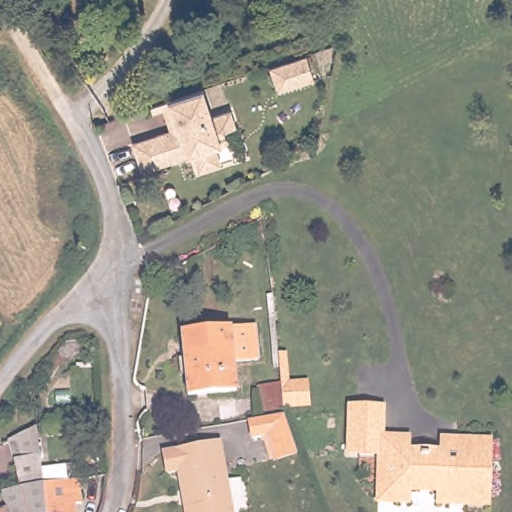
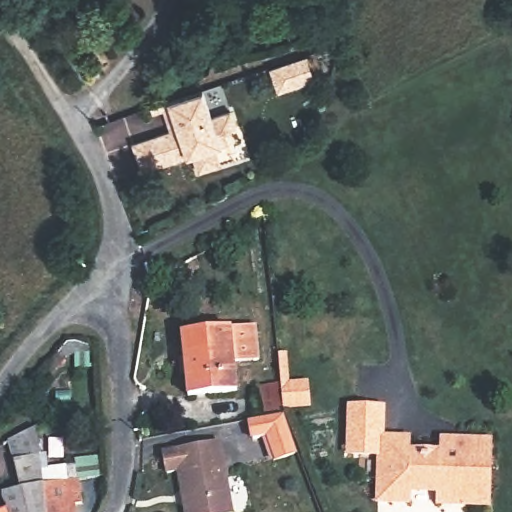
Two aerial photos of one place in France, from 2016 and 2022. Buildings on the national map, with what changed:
unchanged [(278,91),(269,66),(304,54),(314,79),(278,91)]
unchanged [(235,111),(241,127),(229,132),(233,144),(220,148),(225,165),(204,172),(197,155),(192,157),(185,141),(174,146),(180,161),(148,174),(137,146),(179,131),(170,110),(161,114),(158,106),(179,99),(207,90),(218,117),(235,111)]
unchanged [(192,400),(185,336),(257,330),(260,365),(236,366),(239,395),(192,400)]
unchanged [(260,414),(256,386),(279,383),(278,351),(289,350),(292,379),(308,378),(310,408),(260,414)]
unchanged [(407,491),(407,506),(392,506),(377,505),(378,460),(348,460),(350,413),(380,414),(379,442),(393,443),(409,443),(409,458),(439,460),(439,445),(454,445),(489,446),(488,509),(451,507),(438,507),(438,492),(407,491)]
unchanged [(250,441),(248,423),(283,417),(295,454),(274,462),(265,440),(250,441)]
unchanged [(5,495),(23,490),(20,475),(17,461),(9,443),(41,428),(43,449),(48,486),(74,482),(81,481),(83,493),(84,503),(78,505),(79,512),(4,512),(10,510),(5,495)]
unchanged [(167,452),(218,443),(231,512),(186,512),(178,470),(170,470),(167,452)]

